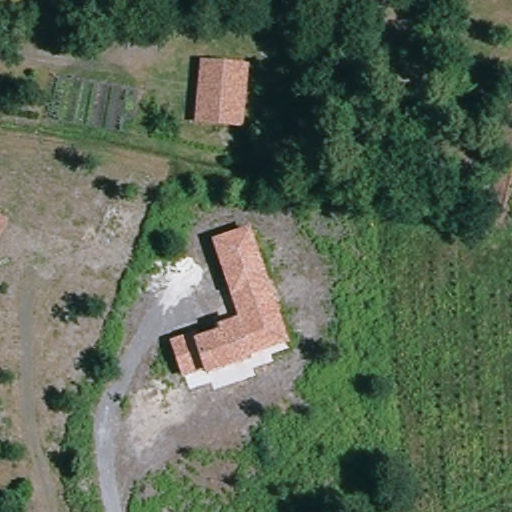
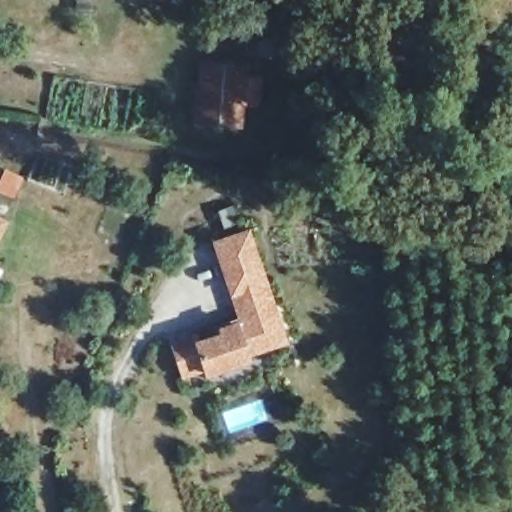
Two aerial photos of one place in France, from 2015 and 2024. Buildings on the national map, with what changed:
unchanged [(0,50),(6,52),(4,65),(0,63),(0,50)]
unchanged [(191,114),(206,62),(248,75),(235,126),(191,114)]
unchanged [(0,239),(0,217),(8,222),(0,239)]
unchanged [(169,342),(238,317),(231,296),(212,241),(251,227),(270,283),(289,343),(251,355),(253,361),(206,377),(204,372),(182,378),(169,342)]

